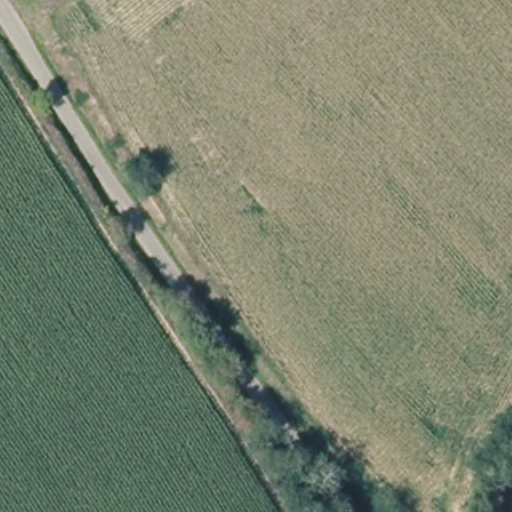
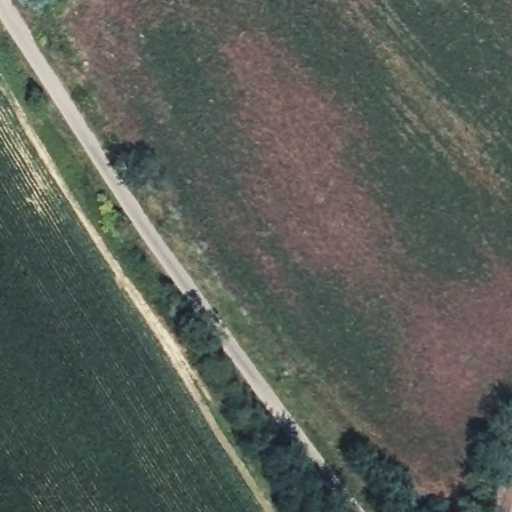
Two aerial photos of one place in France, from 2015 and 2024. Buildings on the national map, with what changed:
[]

